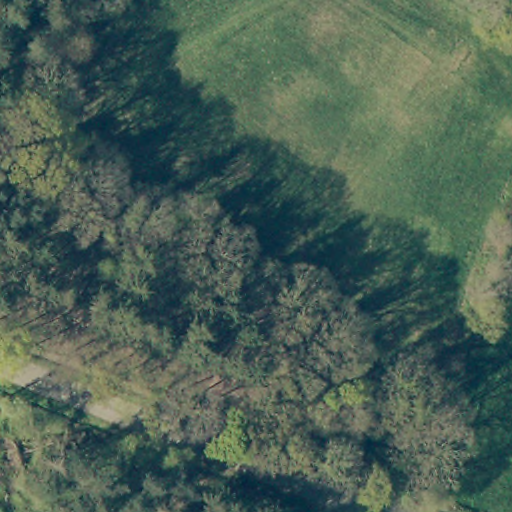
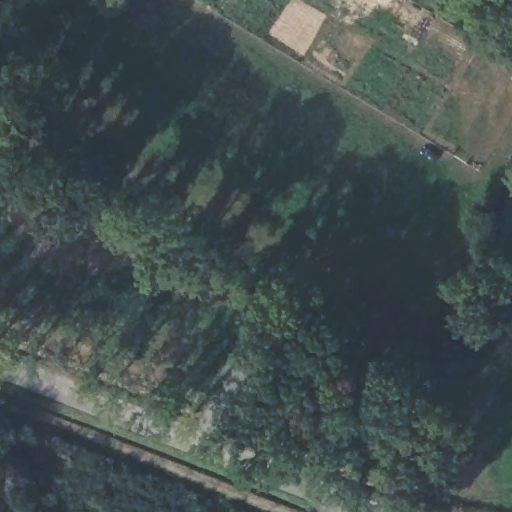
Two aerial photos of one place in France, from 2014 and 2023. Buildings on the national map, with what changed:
[]

